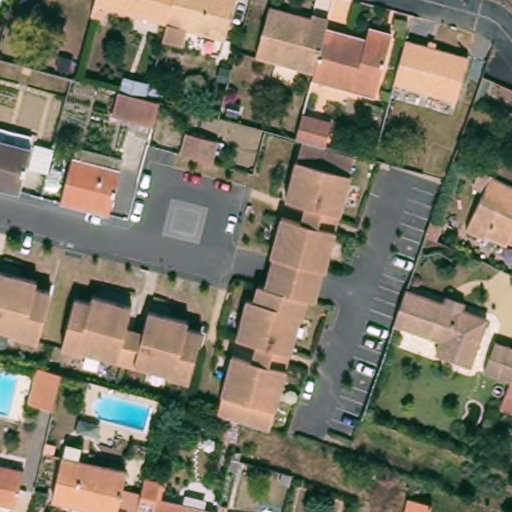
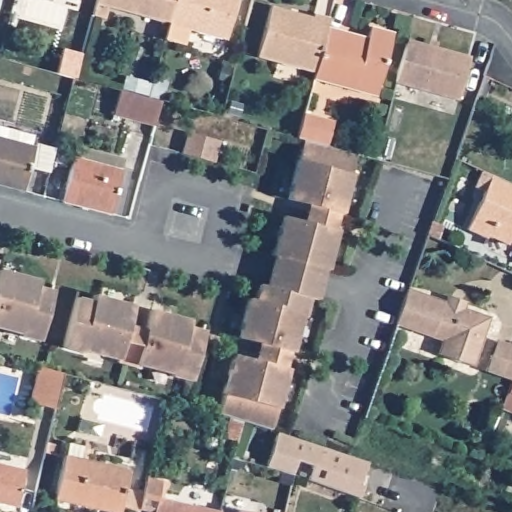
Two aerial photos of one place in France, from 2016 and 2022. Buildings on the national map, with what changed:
unchanged [(172,20),(100,1),(101,0),(177,0),(172,20)]
unchanged [(177,0),(241,0),(231,37),(192,26),(188,42),(168,36),(167,36),(172,20),(177,0)]
unchanged [(332,30),(320,75),(263,60),(276,10),(318,21),(319,16),(334,21),(332,30)]
unchanged [(320,75),(332,30),(352,36),(352,39),(372,45),(376,31),(396,37),(380,97),(318,81),(320,75)]
unchanged [(473,58),(461,100),(398,83),(410,41),(473,58)]
unchanged [(116,116),(122,92),(152,100),(164,104),(159,123),(158,125),(158,128),(116,116)]
unchanged [(357,153),(319,298),(308,297),(271,427),(221,411),(231,353),(253,359),(257,340),(237,336),(248,294),(256,295),(259,280),(268,281),(281,214),(302,220),(306,201),(287,198),(307,132),(302,130),(308,106),(337,115),(331,138),(329,145),(357,153)]
unchanged [(31,137),(28,149),(31,149),(20,194),(0,189),(0,129),(31,137)]
unchanged [(216,159),(185,150),(191,129),(222,137),(216,159)]
unchanged [(75,155),(76,156),(79,146),(126,158),(123,168),(111,213),(98,209),(87,206),(63,200),(75,155)]
unchanged [(50,176),(32,171),(38,147),(56,152),(50,176)]
unchanged [(512,245),(511,246),(491,237),(490,239),(471,231),(496,177),(512,184),(512,245)]
unchanged [(449,226),(444,239),(443,239),(424,230),(428,217),(449,226)]
unchanged [(0,268),(37,277),(53,291),(41,343),(0,328),(0,271),(0,268)]
unchanged [(442,339),(397,322),(401,312),(408,290),(446,303),(449,296),(466,302),(463,309),(489,318),(473,366),(444,357),(436,354),(442,339)]
unchanged [(94,297),(96,293),(135,302),(130,318),(147,323),(152,308),(190,318),(209,329),(196,385),(137,363),(141,345),(126,343),(122,361),(64,345),(75,295),(94,297)]
unchanged [(496,340),(512,346),(512,380),(485,371),(496,340)]
unchanged [(59,406),(59,405),(31,398),(40,362),(67,369),(59,406)]
unchanged [(512,392),(511,392),(512,390),(512,392)]
new [(266,463),(278,427),(318,438),(367,456),(359,479),(363,480),(358,494),(308,476),(313,462),(297,457),(292,471),(293,471),(291,481),(282,479),(278,477),(280,468),(266,463)]
unchanged [(102,512),(55,501),(67,447),(84,450),(81,463),(125,474),(116,512),(102,512)]
unchanged [(25,468),(17,504),(0,501),(0,463),(25,468)]
unchanged [(171,483),(167,502),(207,512),(149,512),(156,480),(171,483)]
demolished [(436,499),(433,512),(408,512),(412,494),(436,499)]

